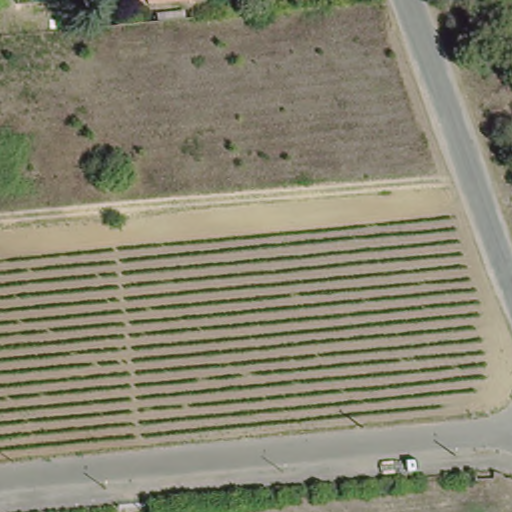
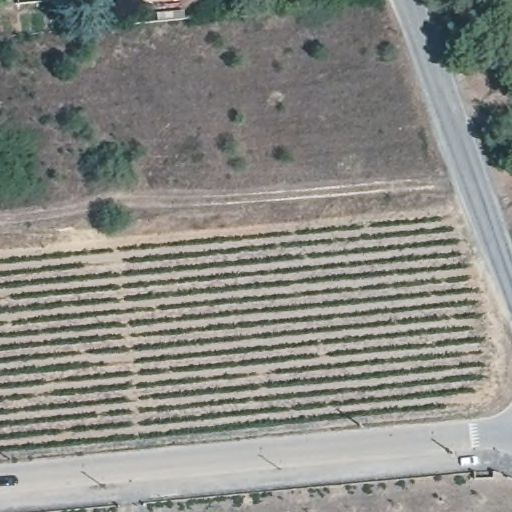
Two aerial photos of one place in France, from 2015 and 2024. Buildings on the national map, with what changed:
unchanged [(152,1),(151,0),(156,0),(152,1)]

